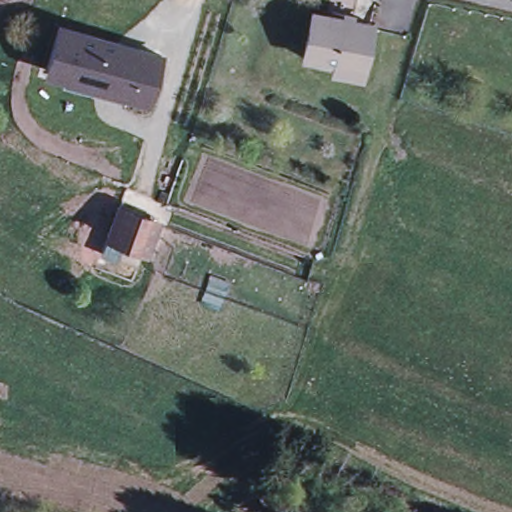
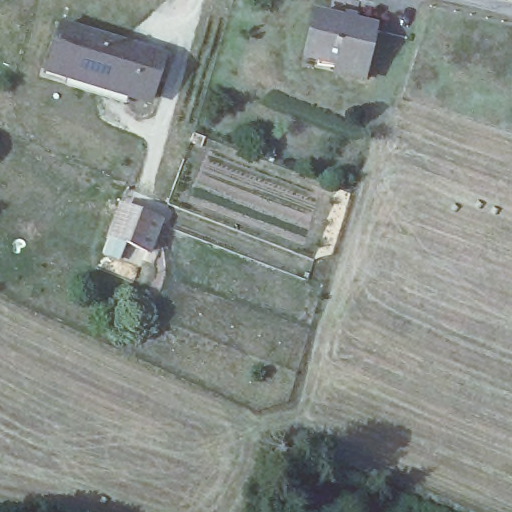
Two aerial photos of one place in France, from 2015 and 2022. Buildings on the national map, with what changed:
unchanged [(338,72),(332,71),(334,62),(302,55),(301,55),(312,11),(315,11),(352,20),(373,25),(364,65),(361,77),(338,72)]
unchanged [(57,23),(166,52),(150,105),(43,73),(57,23)]
unchanged [(119,205),(160,222),(149,246),(146,251),(107,235),(110,228),(119,205)]

